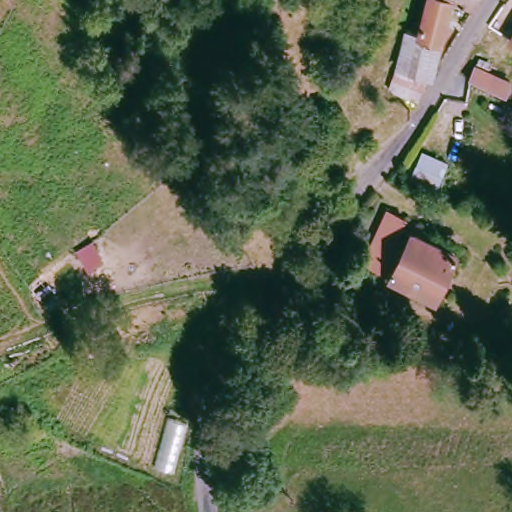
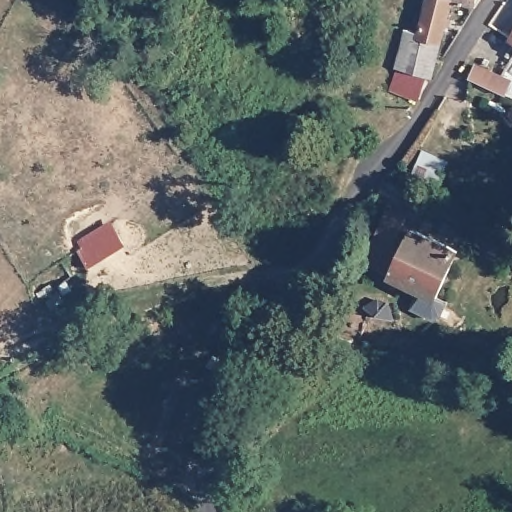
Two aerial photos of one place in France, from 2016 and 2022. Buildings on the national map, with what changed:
unchanged [(390,90),(406,29),(410,30),(418,0),(452,0),(435,67),(413,100),(390,90)]
unchanged [(480,0),(478,5),(454,0),(480,0)]
unchanged [(479,67),(512,78),(512,93),(474,80),(479,67)]
unchanged [(437,300),(395,283),(397,278),(368,266),(391,215),(410,224),(406,234),(457,254),(437,300)]
new [(88,268),(73,244),(110,221),(126,245),(88,268)]

